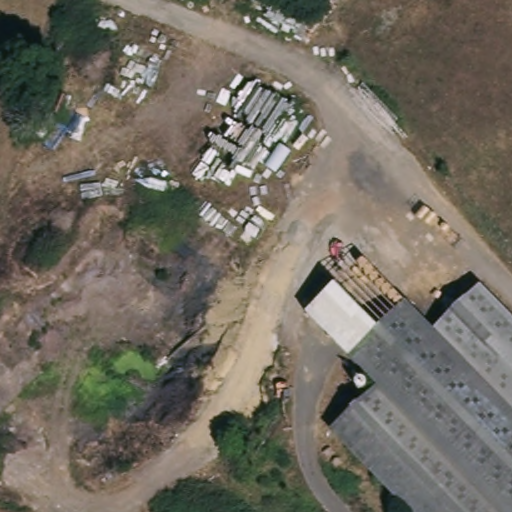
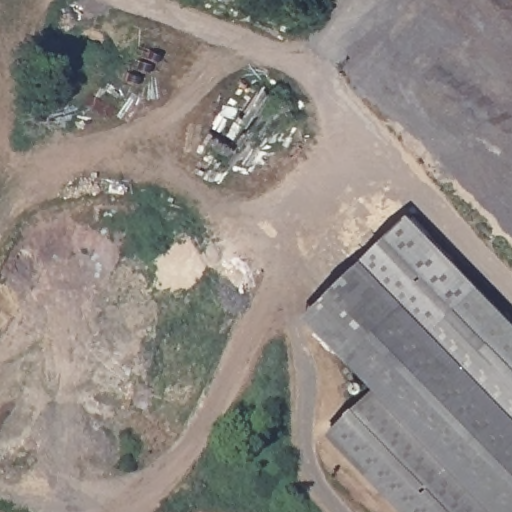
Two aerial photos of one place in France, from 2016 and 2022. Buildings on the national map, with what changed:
new [(306,313),(364,257),(412,211),(482,280),(434,330),(405,299),(349,356),(306,313)]
unchanged [(410,512),(331,430),(378,386),(349,356),(405,299),(434,330),(482,280),(512,310),(512,512),(410,512)]

